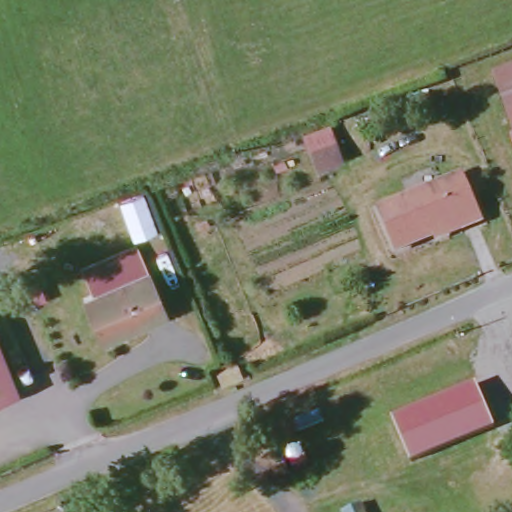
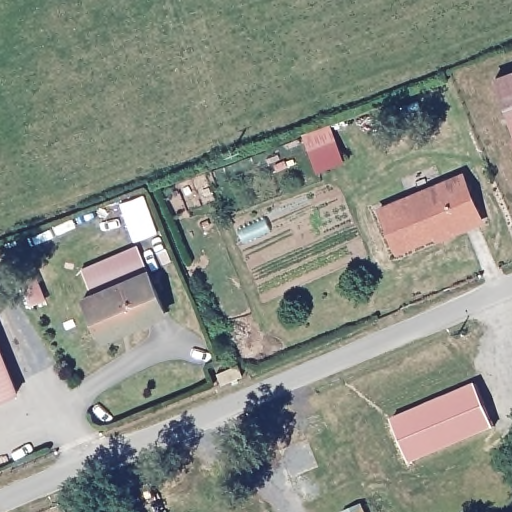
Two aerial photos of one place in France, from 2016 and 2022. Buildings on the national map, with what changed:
unchanged [(512,68),(512,126),(493,75),(512,68)]
unchanged [(342,162),(313,171),(305,147),(284,155),(279,144),(301,137),(298,131),(330,123),(342,162)]
unchanged [(482,220),(461,231),(457,223),(398,249),(380,209),(462,174),(482,220)]
unchanged [(102,348),(97,336),(82,300),(149,274),(166,314),(126,331),(128,337),(102,348)]
unchanged [(45,303),(31,309),(20,286),(35,279),(45,303)]
unchanged [(16,394),(0,401),(0,355),(16,394)]
unchanged [(392,419),(475,385),(496,429),(412,463),(392,419)]
unchanged [(321,425),(296,434),(290,419),(316,409),(321,425)]
unchanged [(337,512),(337,511),(360,502),(365,512),(337,512)]

